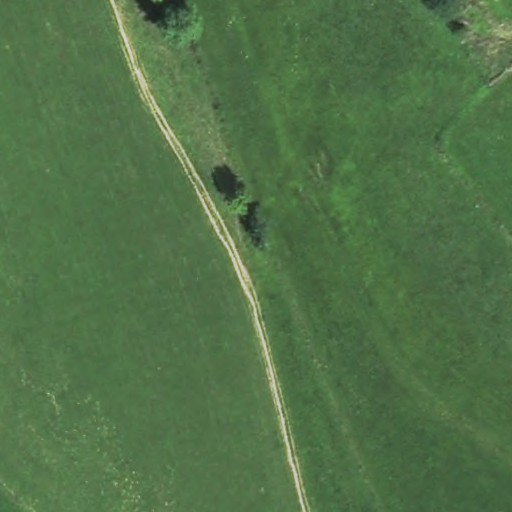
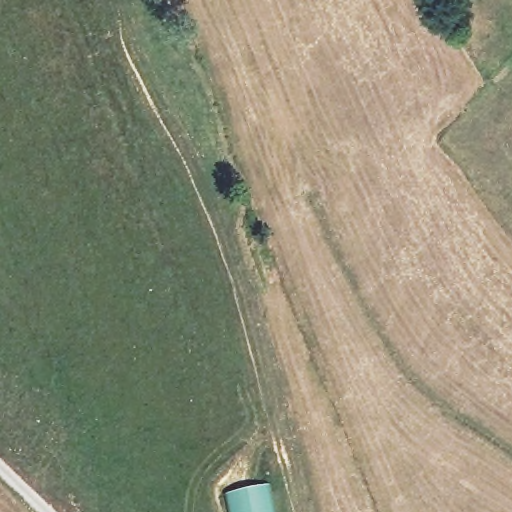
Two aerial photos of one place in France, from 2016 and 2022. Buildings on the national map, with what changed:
new [(270,489),(275,512),(229,512),(226,498),(270,489)]

